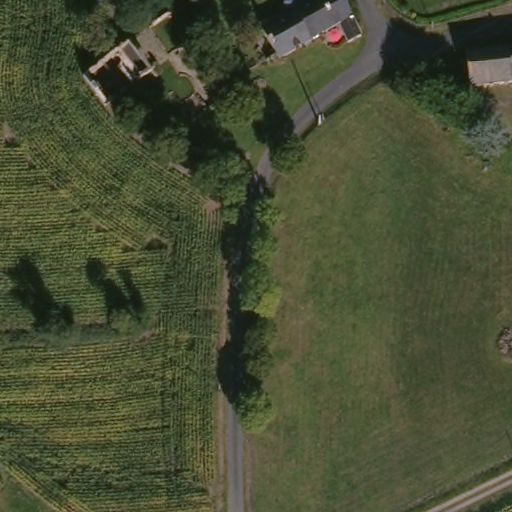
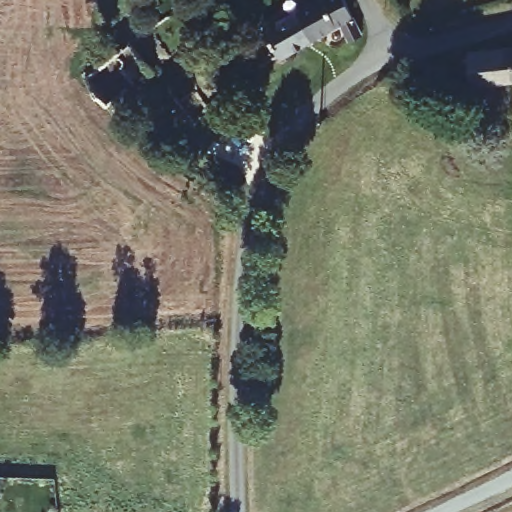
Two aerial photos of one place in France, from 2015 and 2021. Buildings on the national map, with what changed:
unchanged [(311,0),(354,0),(359,11),(372,36),(354,48),(340,25),(319,36),(287,53),(280,57),(276,62),(253,32),(269,24),(300,6),(311,0)]
unchanged [(512,85),(472,90),(467,50),(467,48),(512,43),(512,85)]

